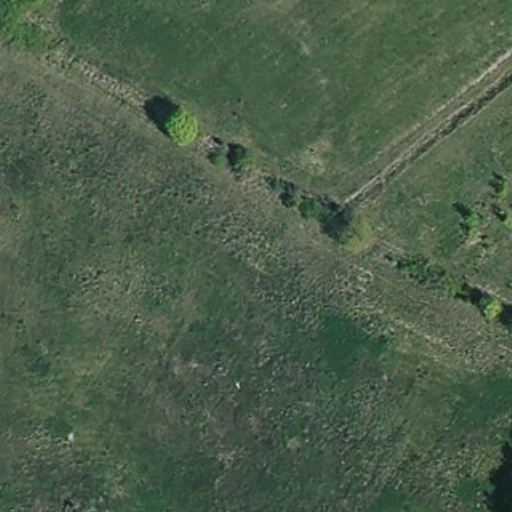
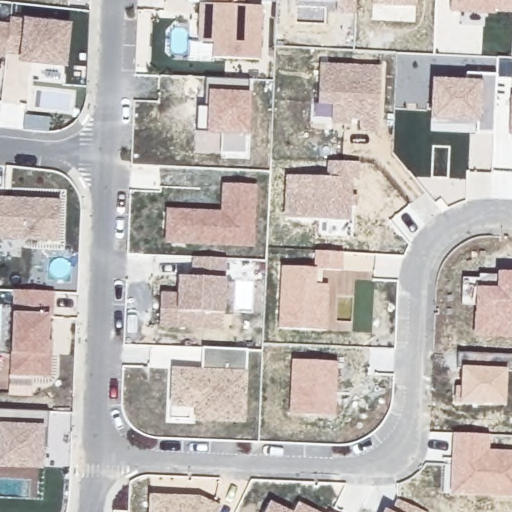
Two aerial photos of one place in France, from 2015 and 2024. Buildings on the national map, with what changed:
new [(261,6),(261,61),(212,57),(213,45),(198,43),(199,4),(206,4),(207,0),(245,0),(245,6),(261,6)]
new [(338,12),(338,1),(312,0),(356,0),(356,13),(338,12)]
new [(373,5),(373,0),(416,0),(416,6),(373,5)]
new [(10,20),(23,20),(70,24),(65,69),(18,64),(19,55),(6,53),(6,57),(0,56),(0,24),(10,26),(10,20)]
new [(360,121),(351,120),(351,125),(333,124),(333,106),(319,104),(321,64),(381,66),(377,132),(360,131),(360,121)]
new [(466,74),(496,74),(493,133),(476,132),(477,123),(431,121),(432,80),(467,81),(466,74)]
new [(221,136),(206,134),(206,132),(198,131),(198,107),(205,106),(206,80),(248,81),(246,94),(250,94),(248,136),(246,136),(246,155),(221,153),(221,136)]
new [(512,96),(512,135),(508,135),(511,96),(512,96)]
new [(326,178),(328,162),(360,163),(359,179),(353,179),(353,196),(358,196),(357,206),(351,206),(351,222),(285,217),(286,175),(326,178)]
new [(221,184),(257,185),(254,248),(165,244),(165,209),(221,210),(221,184)]
new [(58,239),(0,237),(0,196),(60,199),(58,239)]
new [(314,268),(316,251),(344,253),(343,270),(323,270),(322,285),(329,285),(326,329),(279,327),(282,267),(314,268)]
new [(160,326),(161,295),(178,295),(178,278),(193,278),(194,259),(225,260),(222,328),(160,326)]
new [(475,337),(476,317),(476,306),(462,305),(462,278),(479,279),(479,275),(497,276),(497,272),(512,273),(512,338),(475,337)]
new [(53,351),(50,377),(10,376),(11,354),(12,314),(13,290),(55,291),(55,316),(49,315),(48,350),(53,351)]
new [(245,422),(195,422),(196,408),(169,408),(171,368),(201,369),(202,348),(248,350),(247,371),(245,422)]
new [(458,369),(458,354),(512,355),(512,370),(506,369),(505,406),(461,403),(457,404),(457,387),(461,387),(461,368),(458,369)]
new [(338,363),(335,416),(289,413),(292,360),(338,363)]
new [(38,466),(0,464),(0,409),(48,411),(47,429),(46,446),(38,446),(38,466)]
new [(490,435),(489,450),(512,451),(512,498),(450,494),(454,433),(490,435)]
new [(218,512),(149,512),(150,495),(200,496),(221,506),(218,512)]
new [(398,500),(425,512),(391,512),(398,500)]
new [(271,502),(292,512),(265,512),(271,502)]
new [(299,503),(318,512),(294,512),(299,503)]
new [(390,512),(383,512),(385,509),(390,512)]

